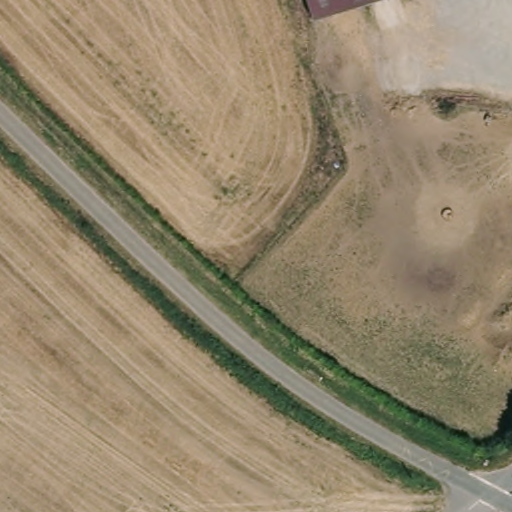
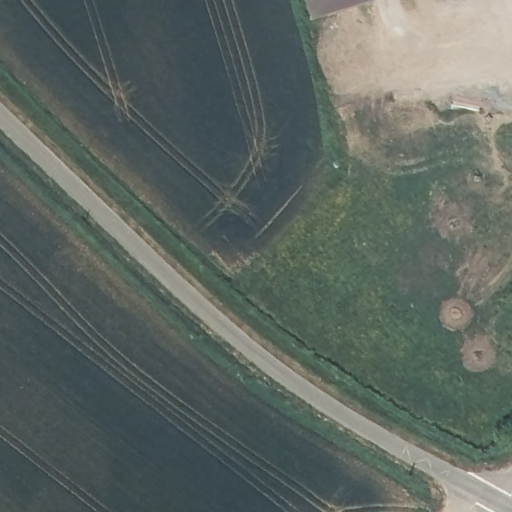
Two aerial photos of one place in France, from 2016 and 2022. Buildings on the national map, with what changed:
unchanged [(328,26),(318,0),(394,0),(328,26)]

